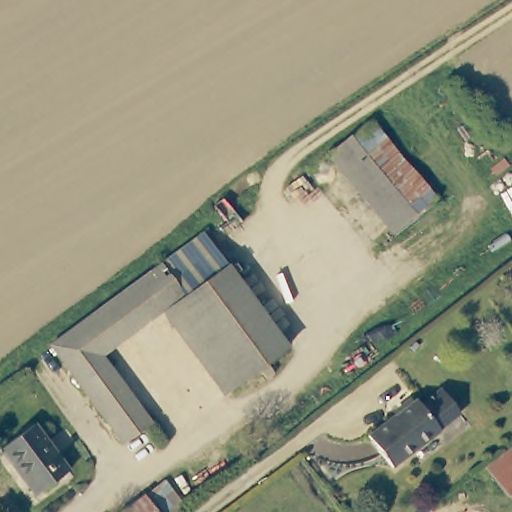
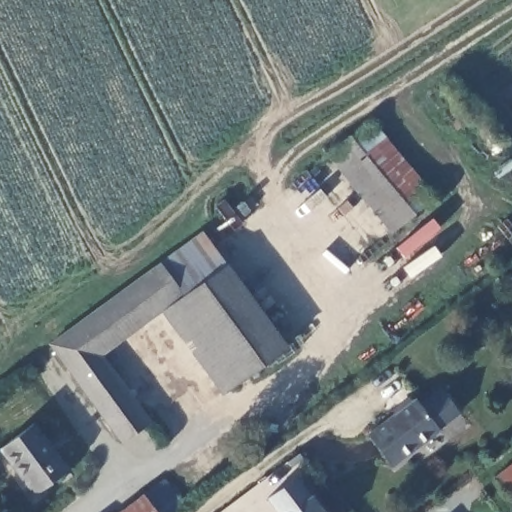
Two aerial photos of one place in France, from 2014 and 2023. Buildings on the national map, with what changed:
unchanged [(375,121),(424,183),(436,198),(392,234),(378,217),(330,156),(375,121)]
unchanged [(207,349),(177,309),(174,305),(187,295),(164,265),(204,235),(260,308),(289,347),(236,387),(207,349)]
unchanged [(127,443),(111,422),(56,348),(164,265),(187,295),(174,305),(107,357),(139,402),(154,422),(127,443)]
unchanged [(454,415),(433,431),(434,433),(387,471),(362,437),(409,401),(414,407),(436,391),(454,415)]
unchanged [(34,496),(25,483),(0,451),(31,427),(56,460),(65,472),(34,496)]
unchanged [(512,453),(512,499),(490,471),(512,453)]
new [(275,512),(266,499),(296,477),(322,512),(275,512)]
unchanged [(152,512),(141,497),(163,480),(185,510),(182,512),(152,512)]
unchanged [(152,512),(121,512),(141,497),(152,512)]

